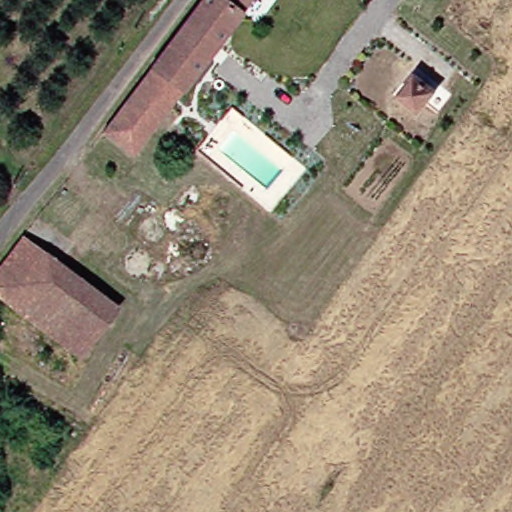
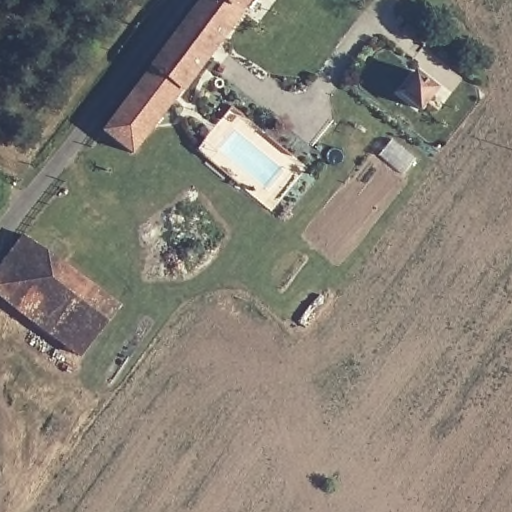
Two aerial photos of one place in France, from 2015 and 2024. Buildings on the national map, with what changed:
unchanged [(134,160),(102,137),(206,0),(258,0),(134,160)]
unchanged [(420,106),(398,89),(416,68),(437,85),(420,106)]
unchanged [(122,306),(82,357),(0,293),(0,275),(30,235),(122,306)]

